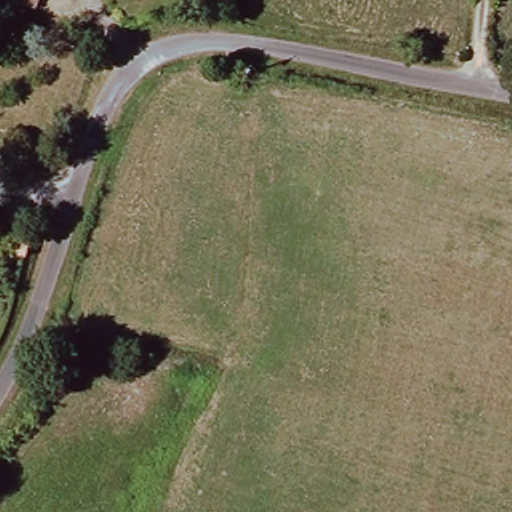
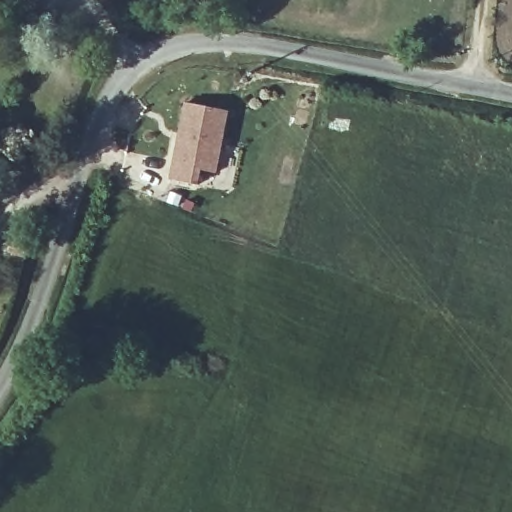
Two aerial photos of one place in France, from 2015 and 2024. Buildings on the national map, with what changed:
unchanged [(31,4),(17,0),(33,0),(31,4)]
new [(184,102),(227,111),(216,172),(201,170),(198,184),(169,179),(184,102)]

